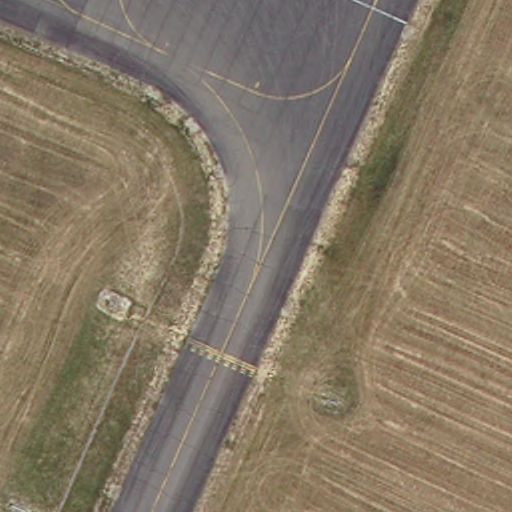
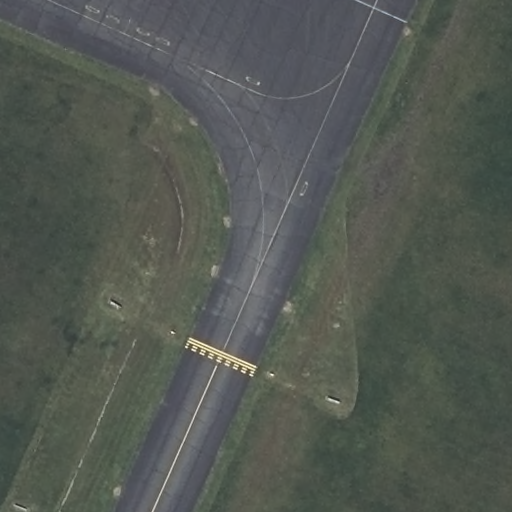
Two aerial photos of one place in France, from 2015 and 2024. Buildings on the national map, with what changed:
[]

